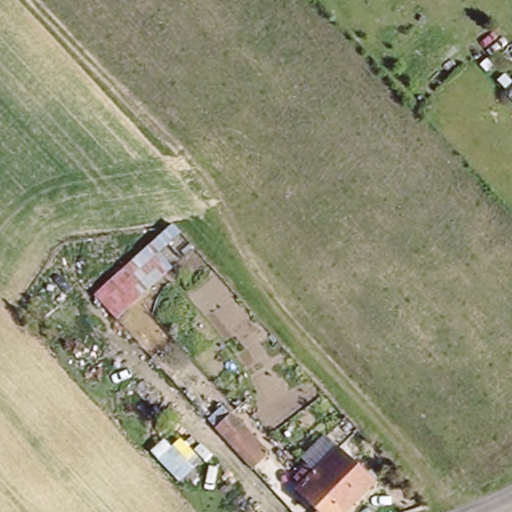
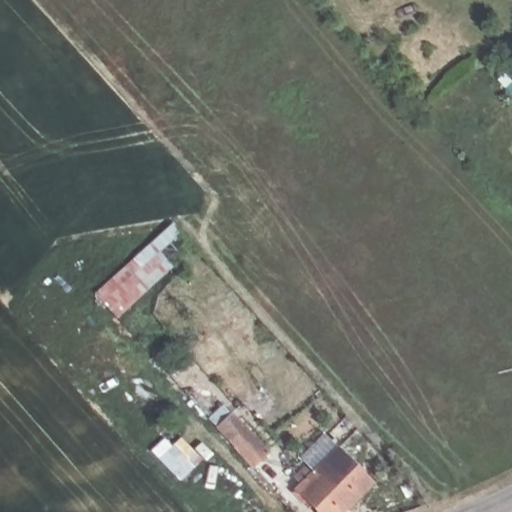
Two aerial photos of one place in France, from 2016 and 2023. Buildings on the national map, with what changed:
unchanged [(181,235),(160,253),(172,268),(113,320),(91,296),(172,225),(181,235)]
unchanged [(265,449),(262,451),(266,456),(249,469),(207,420),(222,407),(265,449)]
unchanged [(314,502),(305,491),(309,488),(303,482),(307,478),(302,470),(314,460),(315,459),(322,466),(349,443),(380,481),(344,512),(328,512),(317,498),(314,502)]

